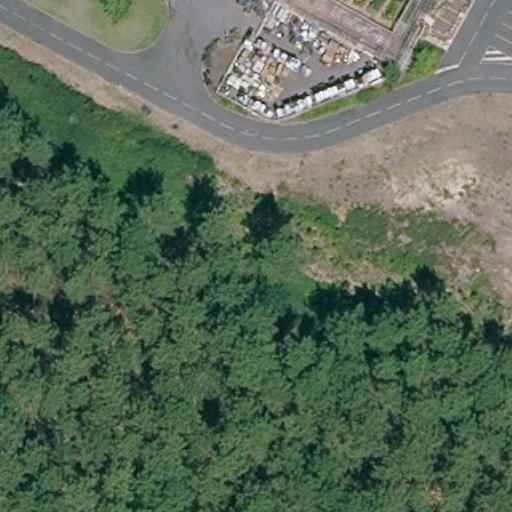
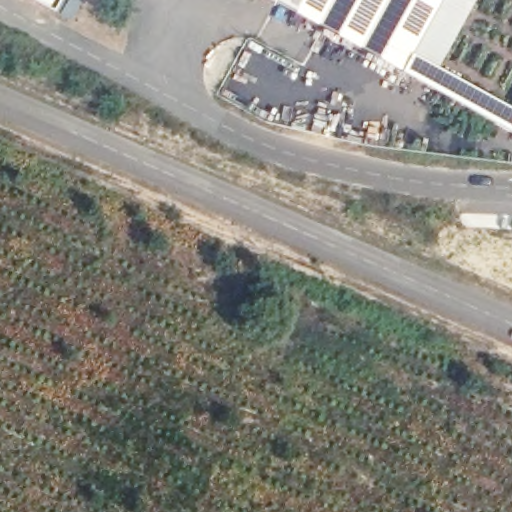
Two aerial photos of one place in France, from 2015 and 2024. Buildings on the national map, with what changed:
new [(38,0),(65,0),(59,11),(38,0)]
unchanged [(279,2),(275,0),(280,0),(279,2)]
new [(440,69),(512,108),(512,131),(405,74),(281,0),(479,0),(440,69)]

